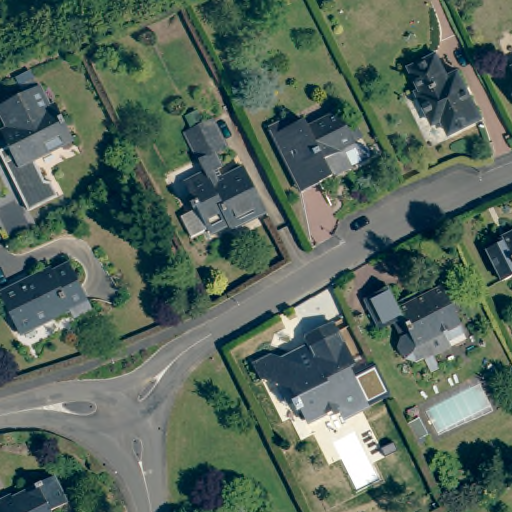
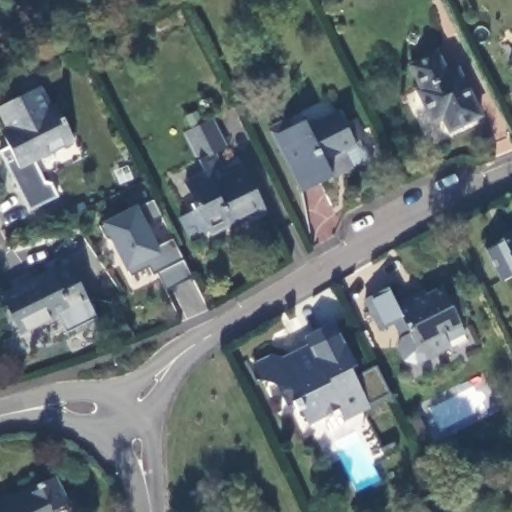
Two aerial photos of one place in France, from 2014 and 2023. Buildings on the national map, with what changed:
unchanged [(450,131),(442,119),(434,122),(418,91),(421,89),(410,67),(435,55),(447,76),(458,71),(481,116),(450,131)]
unchanged [(39,79),(49,99),(56,96),(73,130),(33,150),(44,173),(51,174),(58,188),(28,202),(0,146),(0,142),(15,134),(0,104),(0,99),(39,79)]
unchanged [(302,182),(278,133),(308,118),(312,124),(344,109),(360,142),(347,149),(356,164),(337,173),(325,179),(305,189),(302,182)]
unchanged [(230,234),(227,228),(209,237),(186,192),(205,180),(185,139),(213,125),(227,154),(217,159),(230,184),(244,178),(265,218),(230,234)]
new [(158,275),(153,278),(148,268),(129,278),(105,224),(138,209),(152,201),(160,218),(147,226),(158,248),(172,240),(190,278),(167,290),(158,275)]
unchanged [(512,234),(512,277),(495,242),(512,234)]
unchanged [(51,269),(53,274),(69,266),(92,311),(74,319),(70,312),(20,337),(0,297),(0,294),(51,269)]
unchanged [(424,362),(414,367),(405,363),(397,349),(401,339),(394,323),(380,330),(364,300),(386,289),(397,310),(442,288),(458,320),(439,329),(449,349),(433,357),(439,370),(430,374),(424,362)]
unchanged [(264,371),(277,364),(309,373),(325,366),(315,345),(341,332),(360,368),(357,376),(371,404),(366,419),(350,414),(333,423),(313,416),(306,418),(302,408),(305,406),(300,394),(271,386),(264,371)]
unchanged [(34,490),(33,488),(50,480),(64,507),(53,512),(0,512),(0,507),(34,490)]

